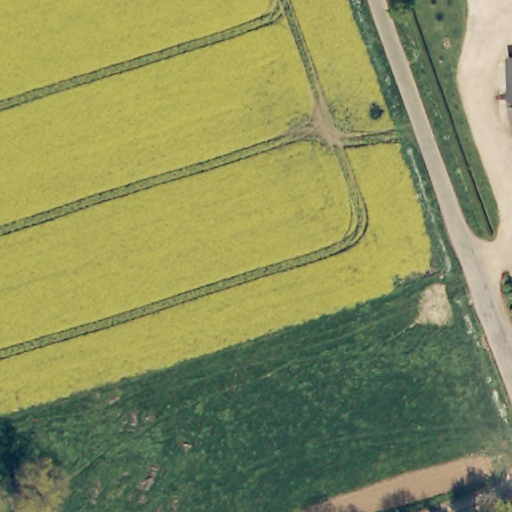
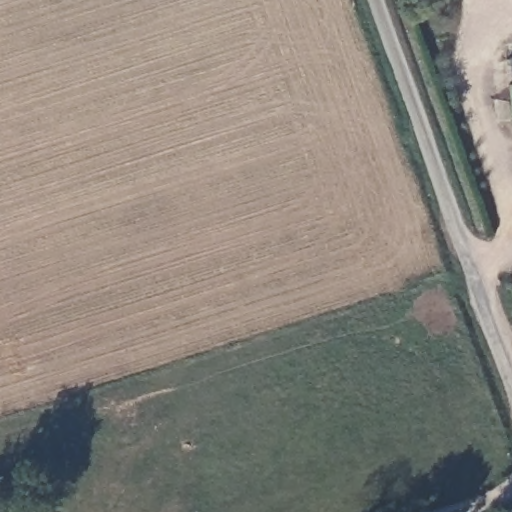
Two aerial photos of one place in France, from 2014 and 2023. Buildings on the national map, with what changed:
unchanged [(512,61),(512,127),(506,62),(512,61)]

